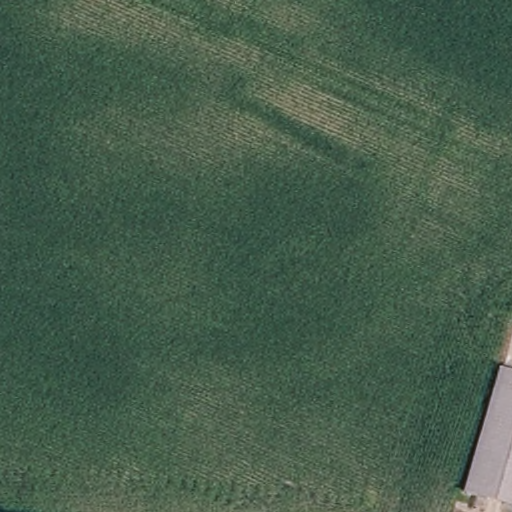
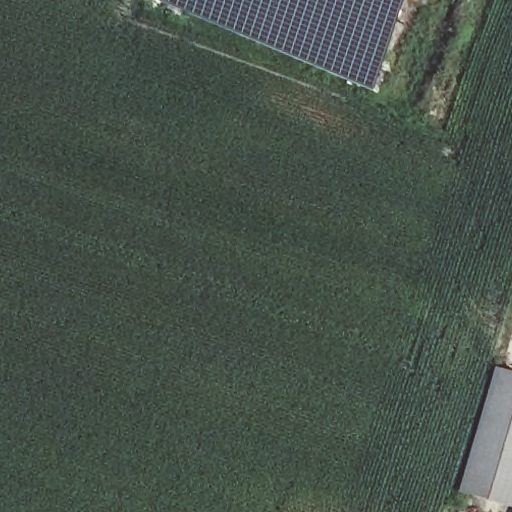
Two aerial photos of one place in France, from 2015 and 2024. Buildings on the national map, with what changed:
new [(379,92),(159,0),(417,0),(379,92)]
unchanged [(511,512),(463,499),(499,373),(512,377),(512,512),(511,512)]

